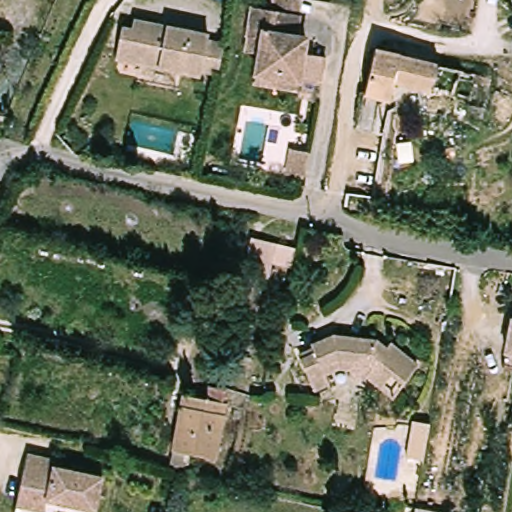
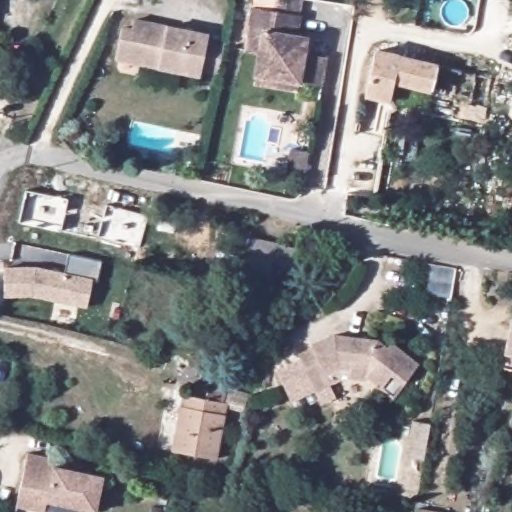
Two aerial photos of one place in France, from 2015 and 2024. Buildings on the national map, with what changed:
unchanged [(256,79),(258,72),(263,39),(248,37),(253,7),(274,11),(276,0),(305,0),(303,16),(299,38),(308,40),(306,52),(327,55),(322,83),(301,79),(300,87),(256,79)]
unchanged [(196,77),(113,59),(120,28),(130,30),(132,19),(204,34),(203,41),(220,45),(213,74),(198,70),(196,77)]
unchanged [(0,44),(0,35),(2,36),(0,44)]
unchanged [(390,99),(366,92),(378,50),(403,57),(441,68),(435,91),(398,80),(395,80),(390,99)]
unchanged [(298,166),(281,162),(287,138),(304,143),(298,166)]
unchanged [(248,253),(251,240),(296,250),(293,263),(248,253)]
new [(38,266),(65,272),(70,255),(100,262),(96,281),(92,281),(86,308),(30,296),(5,298),(3,267),(38,266)]
unchanged [(337,357),(323,363),(326,372),(311,378),(299,348),(314,342),(311,334),(331,326),(376,331),(384,337),(387,332),(416,353),(401,373),(388,363),(379,376),(364,364),(357,360),(337,357)]
unchanged [(503,368),(507,353),(512,330),(512,370),(503,368)]
unchanged [(226,352),(249,358),(243,380),(220,374),(226,352)]
unchanged [(228,419),(214,474),(171,464),(183,408),(205,413),(208,399),(248,407),(245,422),(228,419)]
unchanged [(423,459),(406,456),(413,420),(430,423),(423,459)]
unchanged [(95,511),(48,498),(45,508),(18,502),(30,450),(58,457),(56,463),(73,467),(75,461),(86,464),(85,470),(105,476),(95,511)]
unchanged [(414,512),(415,508),(439,512),(414,512)]

